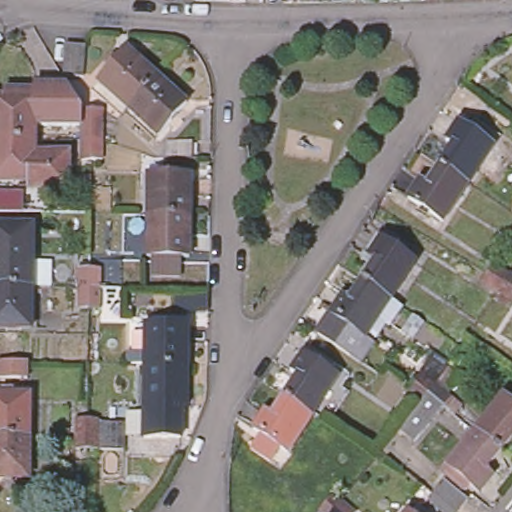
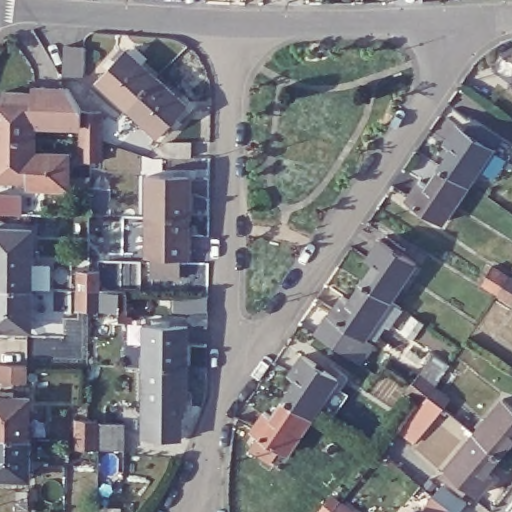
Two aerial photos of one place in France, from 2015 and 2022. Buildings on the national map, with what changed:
unchanged [(130,100),(100,72),(128,43),(158,70),(130,100)]
unchanged [(68,49),(88,50),(86,80),(66,77),(68,49)]
unchanged [(186,97),(160,128),(130,100),(158,70),(186,97)]
unchanged [(78,157),(78,137),(78,125),(32,121),(32,95),(0,95),(0,87),(29,88),(30,82),(65,83),(79,106),(100,107),(99,119),(98,139),(98,157),(88,157),(78,157)]
unchanged [(0,135),(0,95),(32,95),(32,121),(32,135),(0,135)]
unchanged [(440,161),(438,160),(451,142),(444,137),(455,120),(491,142),(466,179),(440,161)]
unchanged [(167,133),(192,133),(193,150),(167,150),(167,133)]
unchanged [(32,135),(32,151),(65,151),(65,185),(29,185),(29,178),(0,178),(0,135),(32,135)]
unchanged [(440,161),(466,179),(440,217),(405,194),(417,175),(425,181),(438,160),(440,161)]
unchanged [(145,208),(145,170),(187,170),(186,209),(145,208)]
unchanged [(20,189),(20,206),(0,206),(0,188),(20,189)]
unchanged [(186,209),(186,248),(145,247),(145,208),(186,209)]
unchanged [(30,220),(30,240),(28,280),(0,279),(0,219),(30,220)]
unchanged [(372,257),(365,252),(377,234),(412,258),(387,295),(360,275),(372,257)]
unchanged [(488,278),(493,270),(510,280),(512,281),(512,304),(500,297),(483,287),(488,278)]
unchanged [(91,311),(80,311),(81,291),(81,272),(92,273),(101,273),(101,292),(100,311),(91,311)]
unchanged [(328,308),(340,291),(346,295),(360,275),(387,295),(361,332),(348,351),(314,329),(328,308)]
unchanged [(28,280),(28,321),(0,320),(0,279),(28,280)]
unchanged [(136,430),(137,358),(122,357),(122,347),(137,348),(138,316),(179,317),(180,359),(176,432),(136,430)]
unchanged [(293,373),(287,369),(300,350),(334,373),(310,408),(282,390),(293,373)]
unchanged [(443,410),(435,419),(413,445),(400,432),(422,406),(420,405),(406,391),(412,385),(419,377),(432,355),(450,366),(433,390),(450,403),(443,410)]
unchanged [(30,365),(30,381),(3,381),(3,365),(30,365)]
unchanged [(0,429),(0,389),(27,390),(26,430),(0,429)]
unchanged [(285,445),(251,421),(263,403),(270,407),(282,390),(310,408),(285,445)]
unchanged [(502,391),(512,399),(512,429),(497,446),(473,426),(502,391)]
unchanged [(74,416),(85,416),(95,416),(95,421),(120,421),(120,447),(95,446),(73,445),(73,436),(74,416)]
unchanged [(439,465),(444,460),(473,426),(497,446),(483,464),(490,470),(476,486),(463,475),(458,481),(439,465)]
unchanged [(26,430),(25,470),(0,469),(0,429),(26,430)]
unchanged [(419,500),(430,487),(439,475),(463,495),(453,506),(449,512),(433,512),(419,500)]
unchanged [(317,510),(330,495),(337,501),(350,512),(320,512),(317,510)]

